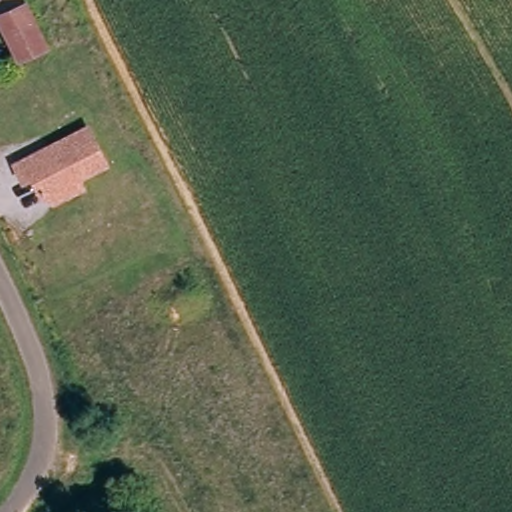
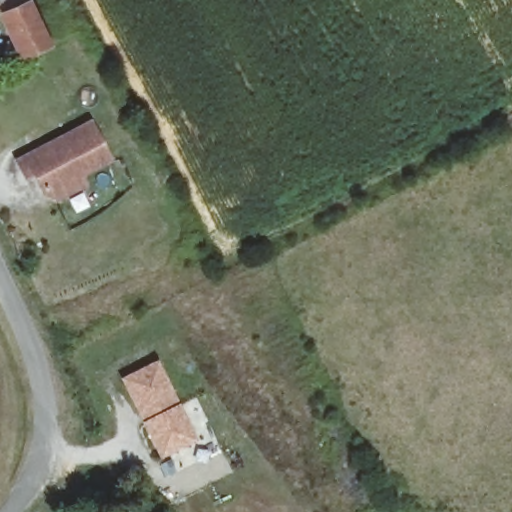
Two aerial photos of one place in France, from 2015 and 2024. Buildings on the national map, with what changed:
unchanged [(0,15),(0,0),(29,0),(50,44),(19,56),(0,15)]
unchanged [(55,202),(52,197),(43,194),(33,174),(25,178),(17,161),(90,125),(108,163),(79,177),(84,188),(55,202)]
new [(119,381),(157,361),(198,444),(161,461),(119,381)]

